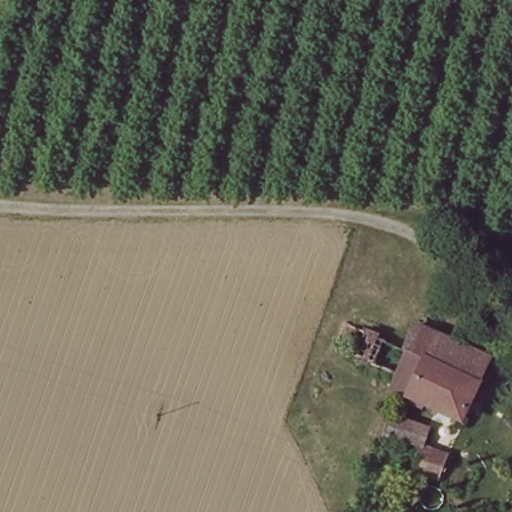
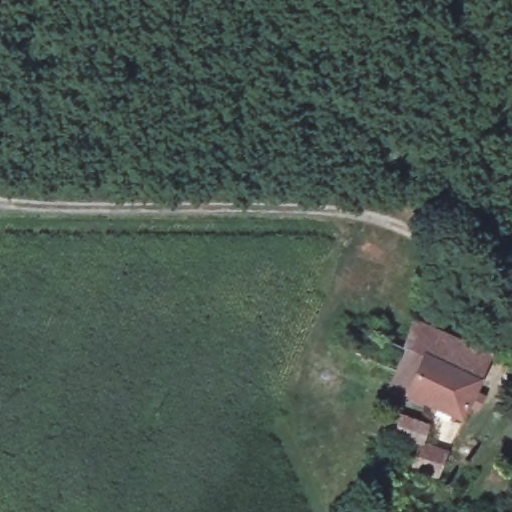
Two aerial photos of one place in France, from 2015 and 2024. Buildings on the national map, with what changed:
unchanged [(401,394),(409,378),(393,367),(413,320),(491,357),(458,425),(401,394)]
unchanged [(447,450),(440,480),(412,473),(420,445),(385,435),(392,411),(426,420),(420,443),(447,450)]

